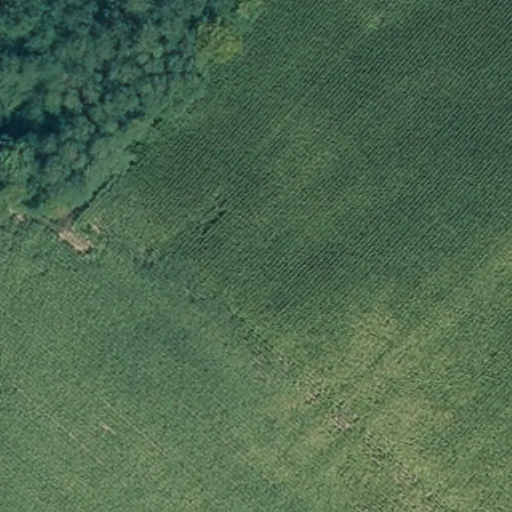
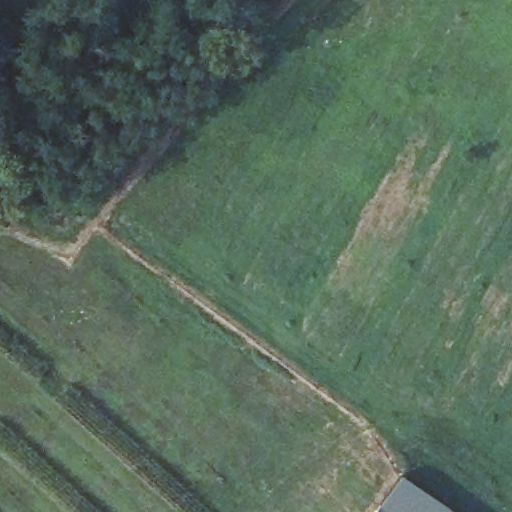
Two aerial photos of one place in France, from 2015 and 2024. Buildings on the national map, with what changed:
new [(401,473),(457,512),(373,512),(401,473)]

